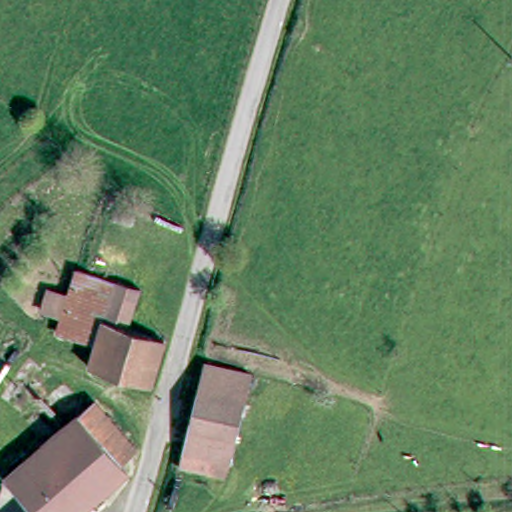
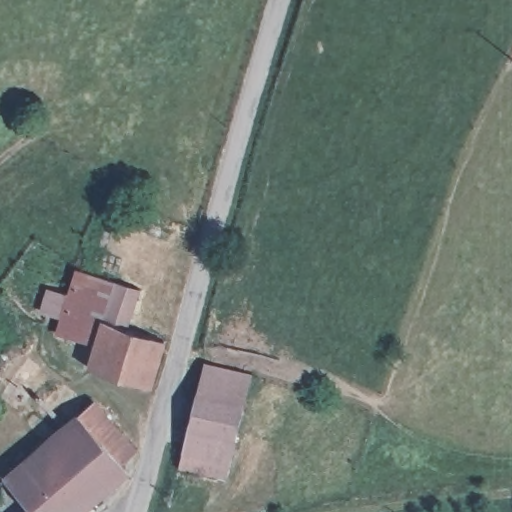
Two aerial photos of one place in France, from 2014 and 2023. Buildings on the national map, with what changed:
unchanged [(89,370),(95,347),(58,332),(64,312),(74,273),(138,293),(126,332),(161,342),(148,388),(89,370)]
unchanged [(248,392),(230,447),(185,437),(201,380),(248,392)]
unchanged [(137,445),(122,460),(80,410),(96,397),(137,445)]
unchanged [(130,468),(79,512),(32,512),(39,507),(9,472),(80,410),(122,460),(130,468)]

